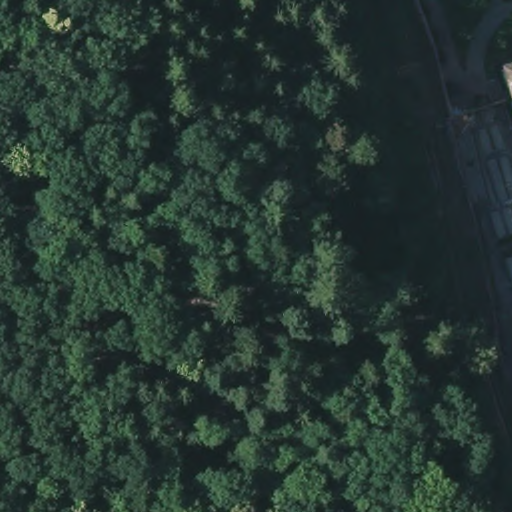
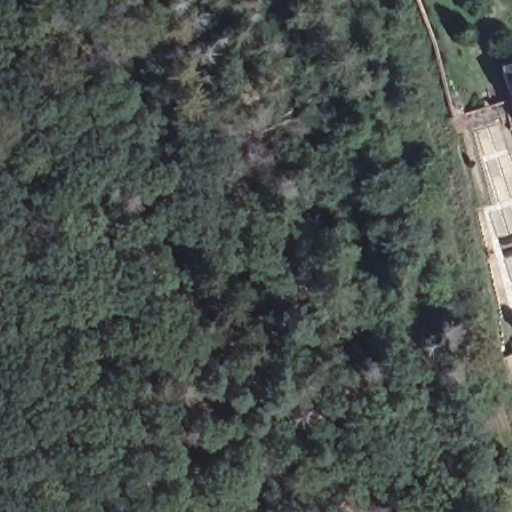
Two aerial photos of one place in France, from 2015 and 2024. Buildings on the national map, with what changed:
unchanged [(504,68),(512,65),(512,90),(504,68)]

